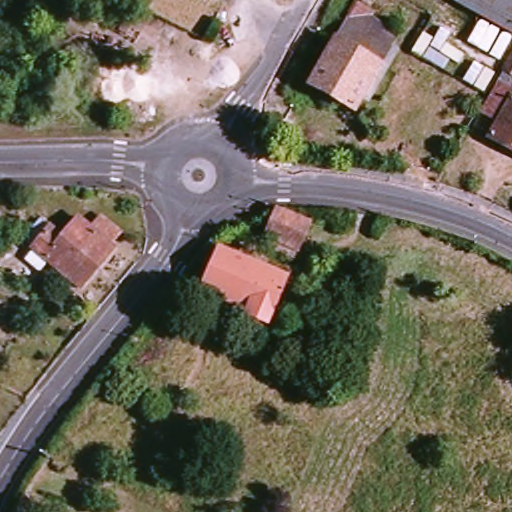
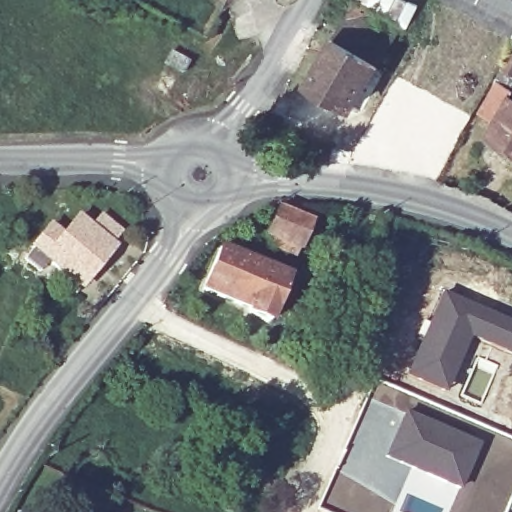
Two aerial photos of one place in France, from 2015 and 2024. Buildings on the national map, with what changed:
unchanged [(396,40),(354,114),(313,88),(364,0),(380,0),(368,23),(396,40)]
unchanged [(448,0),(512,0),(512,37),(448,0)]
unchanged [(512,68),(512,126),(500,119),(507,102),(491,93),(507,66),(512,68)]
unchanged [(264,245),(267,238),(258,233),(263,221),(270,224),(278,210),(310,224),(295,259),(264,245)]
unchanged [(79,288),(32,249),(50,228),(61,236),(76,219),(88,229),(98,217),(118,234),(109,246),(113,248),(79,288)]
unchanged [(286,278),(265,324),(245,316),(247,311),(200,290),(219,248),(286,278)]
new [(439,291),(512,322),(512,354),(470,337),(445,392),(404,375),(439,291)]
new [(376,383),(386,388),(387,385),(417,398),(410,412),(403,409),(381,458),(410,471),(393,505),(371,492),(338,471),(376,383)]
new [(403,409),(410,412),(480,444),(458,492),(410,471),(381,458),(403,409)]
new [(338,471),(371,492),(367,512),(346,512),(323,502),(338,471)]

